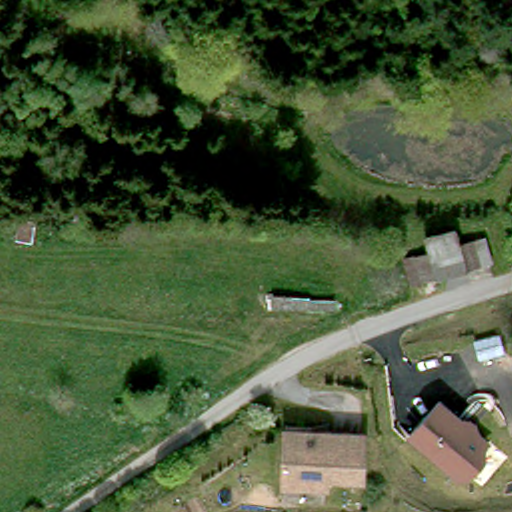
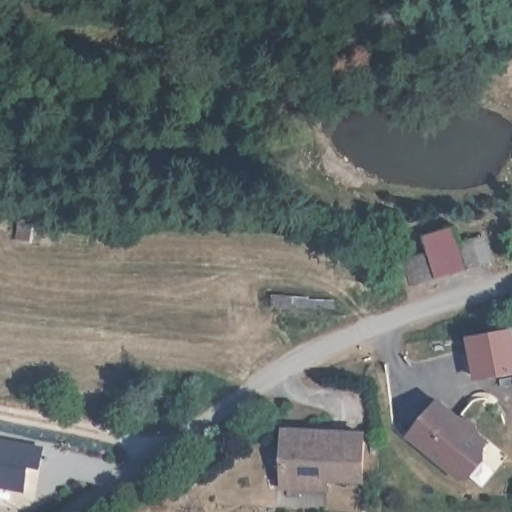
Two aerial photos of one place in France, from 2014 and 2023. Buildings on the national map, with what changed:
unchanged [(404,260),(430,252),(426,238),(453,230),(457,245),(473,240),(480,265),(411,285),(404,260)]
new [(512,327),(512,373),(475,380),(467,334),(512,327)]
unchanged [(482,448),(484,458),(474,470),(463,471),(416,431),(444,396),(468,416),(481,427),(492,437),(482,448)]
unchanged [(364,480),(327,479),(327,489),(284,489),(286,443),(286,431),(312,432),(365,433),(364,480)]
new [(37,470),(26,468),(21,494),(0,490),(0,444),(41,451),(37,470)]

